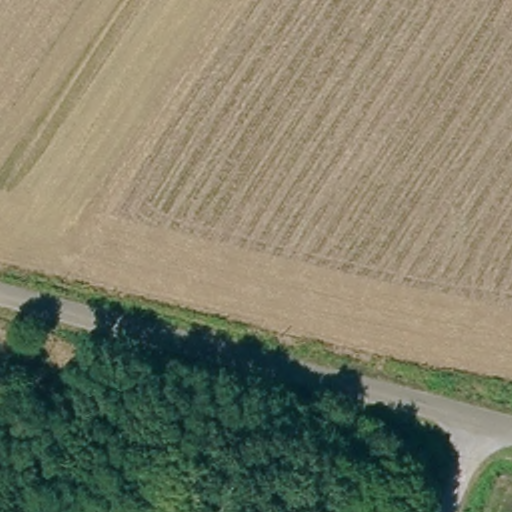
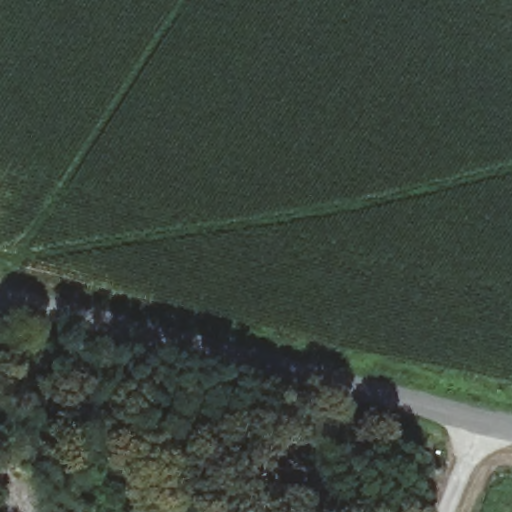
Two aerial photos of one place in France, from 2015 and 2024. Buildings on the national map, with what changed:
unchanged [(439,456),(427,453),(429,447),(441,450),(439,456)]

